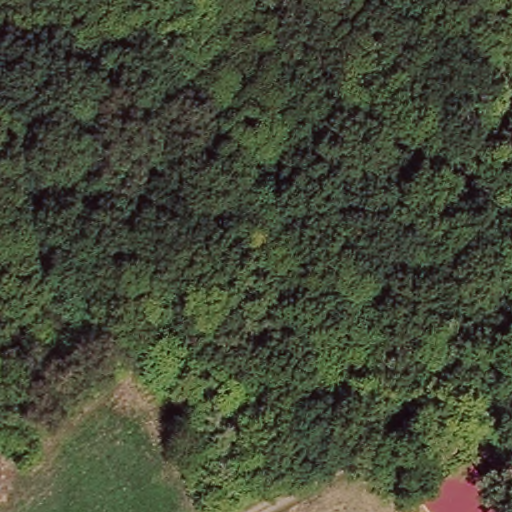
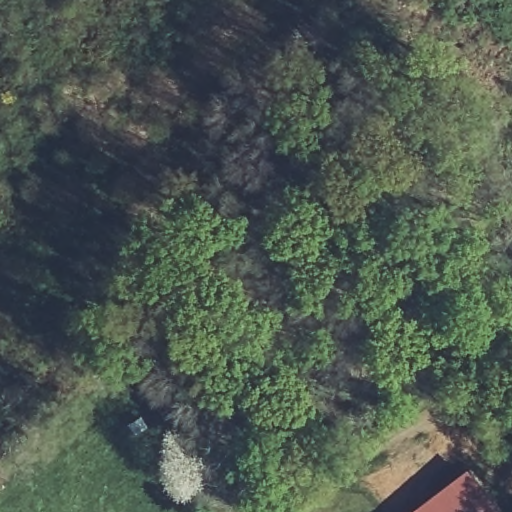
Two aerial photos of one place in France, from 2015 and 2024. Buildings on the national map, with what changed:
new [(470,466),(503,512),(410,512),(470,466)]

